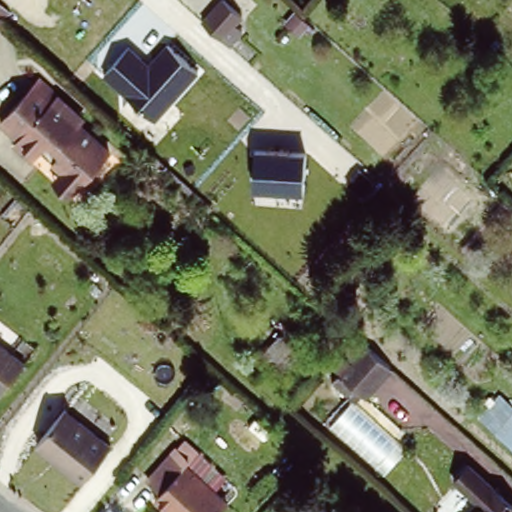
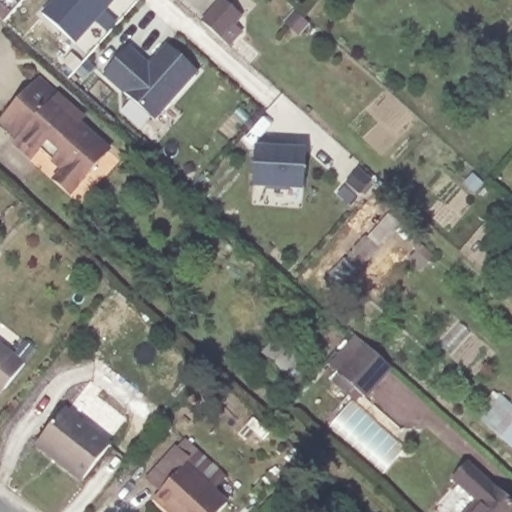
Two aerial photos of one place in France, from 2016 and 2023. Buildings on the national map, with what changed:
new [(115,0),(75,44),(40,14),(54,0),(115,0)]
unchanged [(199,23),(219,0),(221,0),(238,15),(231,24),(240,32),(226,47),(199,23)]
unchanged [(152,61),(168,40),(202,68),(157,120),(100,71),(128,41),(152,61)]
unchanged [(77,190),(62,177),(68,170),(45,149),(37,159),(20,144),(25,137),(5,121),(38,81),(58,99),(62,94),(78,109),(73,115),(113,149),(77,190)]
unchanged [(257,145),(306,148),(303,185),(254,186),(257,145)]
unchanged [(335,272),(352,255),(391,212),(402,222),(362,266),(360,264),(344,280),(335,272)]
unchanged [(0,389),(0,330),(32,356),(10,383),(3,392),(0,389)]
unchanged [(300,349),(283,368),(267,352),(283,334),(300,349)]
unchanged [(375,399),(350,376),(337,364),(362,334),(375,347),(402,371),(375,399)]
unchanged [(64,409),(110,447),(82,479),(37,442),(64,409)]
unchanged [(512,421),(512,450),(497,436),(512,421)]
unchanged [(167,503),(172,497),(160,485),(190,452),(202,463),(198,468),(242,504),(236,512),(178,512),(167,503)]
unchanged [(477,501),(464,489),(455,481),(470,464),(512,502),(512,510),(511,512),(466,512),(477,501)]
unchanged [(258,499),(250,491),(262,476),(272,484),(258,499)]

